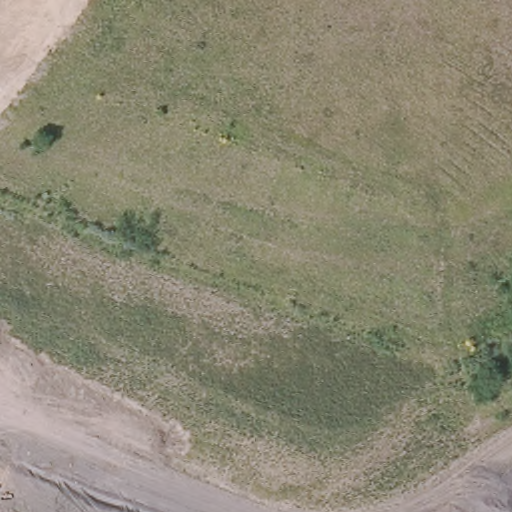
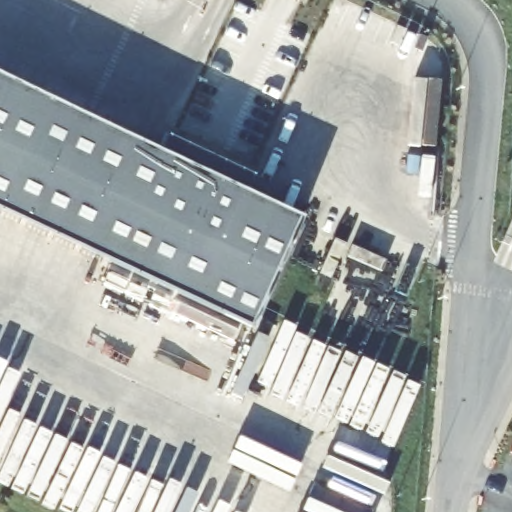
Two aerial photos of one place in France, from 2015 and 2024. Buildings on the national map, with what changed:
new [(294,221),(250,329),(0,210),(0,81),(294,221)]
new [(512,452),(511,452),(512,450),(512,452)]

